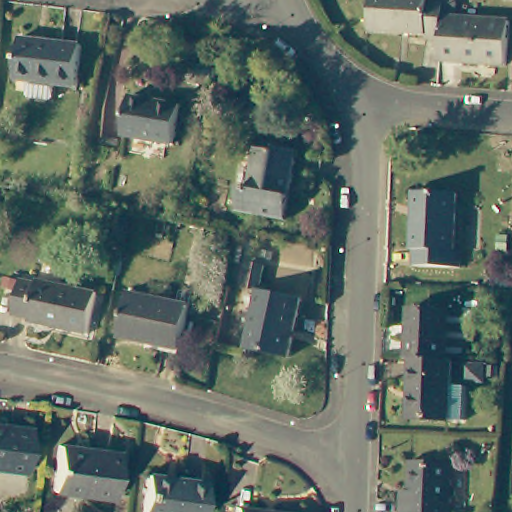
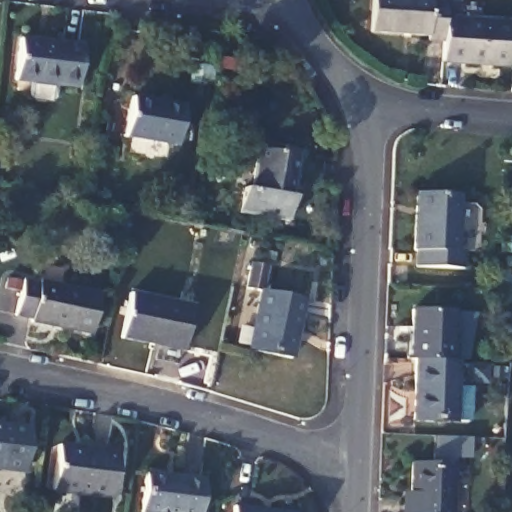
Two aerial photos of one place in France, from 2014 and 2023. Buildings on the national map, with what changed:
unchanged [(444,16),(443,20),(442,39),(426,39),(426,35),(369,32),(371,0),(445,0),(444,16)]
unchanged [(507,65),(440,60),(441,51),(442,39),(443,20),(444,16),(510,21),(507,65)]
unchanged [(79,41),(75,83),(55,81),(53,98),(49,99),(28,98),(26,94),(27,77),(13,76),(18,35),(79,41)]
unchanged [(200,44),(197,61),(181,58),(184,41),(200,44)]
unchanged [(182,105),(174,146),(122,136),(129,98),(182,105)]
unchanged [(255,184),(262,143),(283,147),(284,142),(306,146),(294,216),(244,207),(248,183),(255,184)]
unchanged [(457,194),(454,250),(462,250),(461,268),(413,266),(414,248),(412,248),(414,192),(457,194)]
unchanged [(245,349),(254,291),(237,288),(242,256),(268,263),(267,292),(304,299),(293,358),(245,349)]
unchanged [(28,317),(12,313),(20,278),(35,281),(36,279),(96,292),(87,332),(28,319),(28,317)]
unchanged [(188,308),(179,353),(117,339),(127,295),(188,308)]
unchanged [(449,311),(448,359),(412,358),(407,358),(409,308),(449,311)]
unchanged [(448,359),(453,359),(450,420),(409,418),(412,358),(448,359)]
unchanged [(25,429),(19,472),(0,470),(0,426),(25,429)]
unchanged [(118,450),(112,493),(54,487),(59,443),(118,450)]
unchanged [(411,461),(453,463),(451,512),(401,512),(401,501),(409,502),(411,461)]
unchanged [(196,512),(142,512),(142,507),(140,507),(145,470),(201,477),(196,512)]
unchanged [(232,512),(232,504),(295,512),(232,512)]

